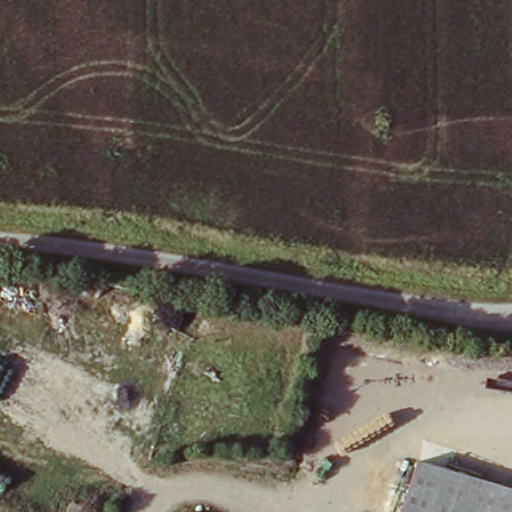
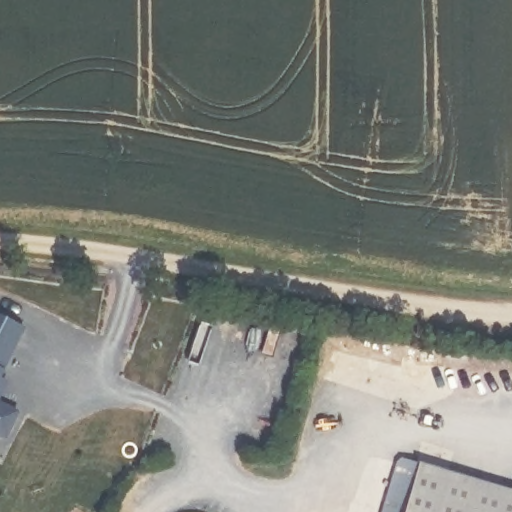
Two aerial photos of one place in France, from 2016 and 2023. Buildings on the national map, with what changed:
new [(24,327),(0,374),(0,314),(24,327)]
new [(3,381),(0,388),(0,379),(3,381)]
new [(16,415),(3,440),(0,438),(0,407),(16,415)]
unchanged [(423,460),(512,485),(512,512),(408,512),(423,460)]

